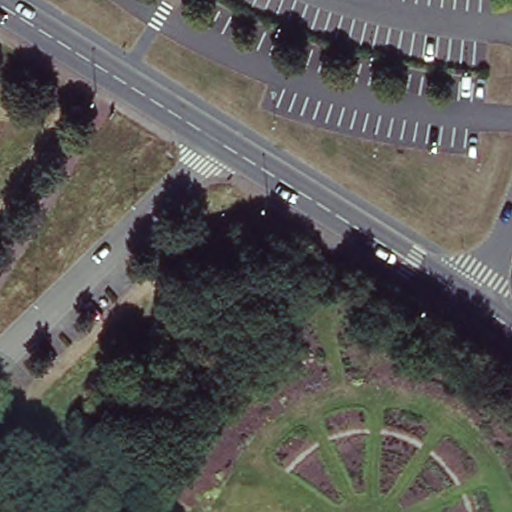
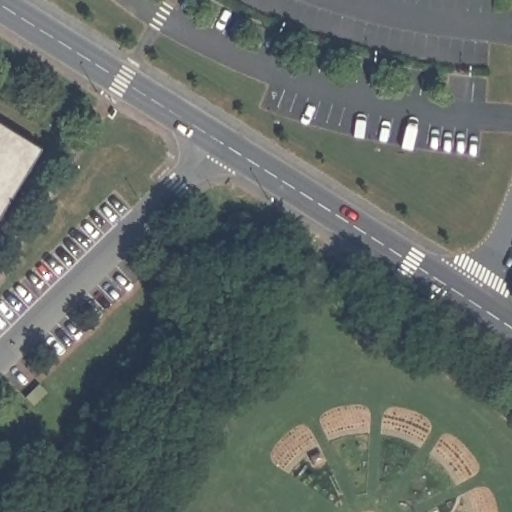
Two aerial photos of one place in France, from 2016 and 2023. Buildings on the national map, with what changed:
new [(0,212),(0,112),(44,140),(0,212)]
unchanged [(327,270),(321,278),(312,272),(317,263),(327,270)]

